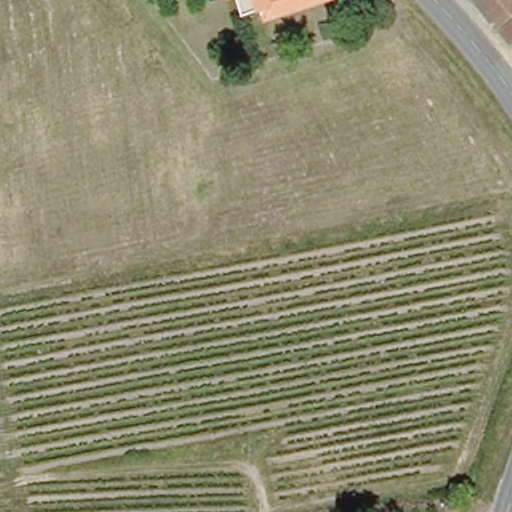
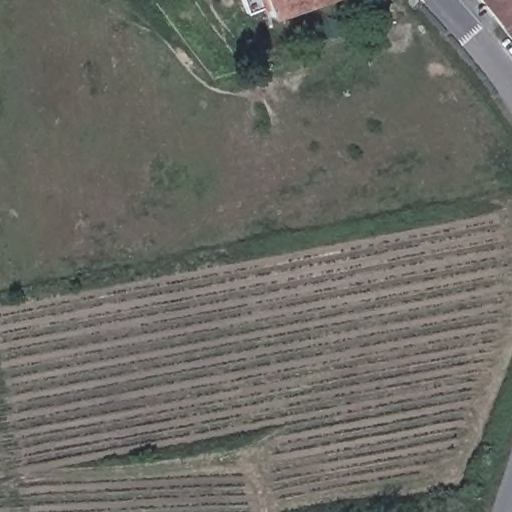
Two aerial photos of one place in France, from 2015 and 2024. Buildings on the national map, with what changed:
unchanged [(260,7),(239,14),(234,0),(319,0),(262,17),(260,7)]
unchanged [(512,40),(479,0),(512,0),(512,40)]

